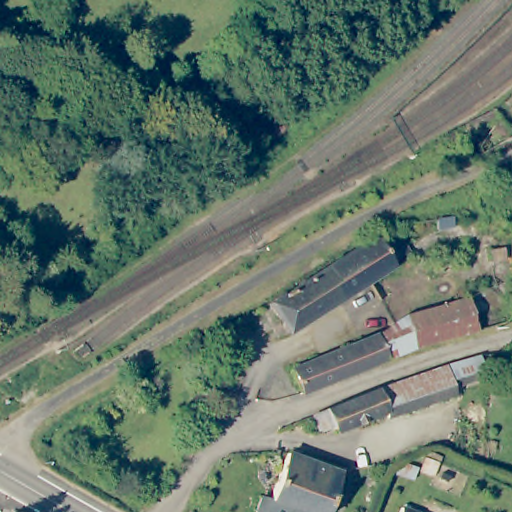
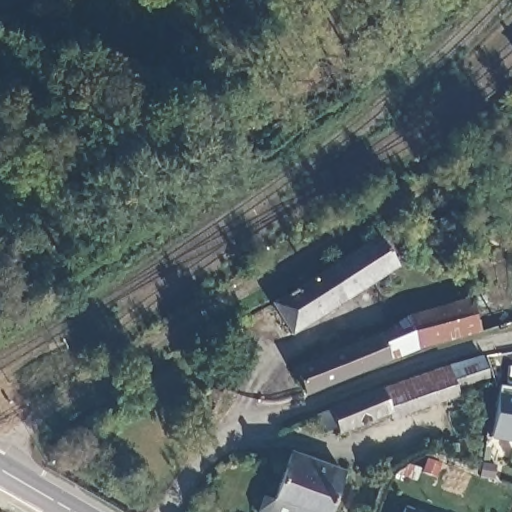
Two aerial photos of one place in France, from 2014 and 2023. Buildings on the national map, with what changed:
unchanged [(409,252),(398,261),(401,263),(290,334),(271,305),(368,242),(376,237),(377,240),(394,227),(409,252)]
unchanged [(414,317),(471,300),(480,332),(422,348),(393,360),(383,335),(414,317)]
unchanged [(393,360),(391,361),(309,394),(299,370),(383,335),(393,360)]
unchanged [(447,361),(481,352),(487,372),(457,384),(458,387),(456,387),(392,412),(383,383),(447,361)]
unchanged [(390,413),(388,410),(338,428),(335,422),(321,427),(315,411),(380,385),(383,383),(392,412),(390,413)]
new [(512,386),(512,442),(489,438),(498,384),(512,386)]
unchanged [(220,393),(215,403),(207,400),(212,389),(220,393)]
unchanged [(347,462),(330,510),(277,491),(295,443),(347,462)]
unchanged [(420,469),(415,481),(393,472),(407,464),(420,469)]
unchanged [(292,512),(268,512),(263,502),(268,487),(277,491),(330,510),(329,512),(292,512)]
unchanged [(404,512),(405,510),(410,512),(404,512)]

